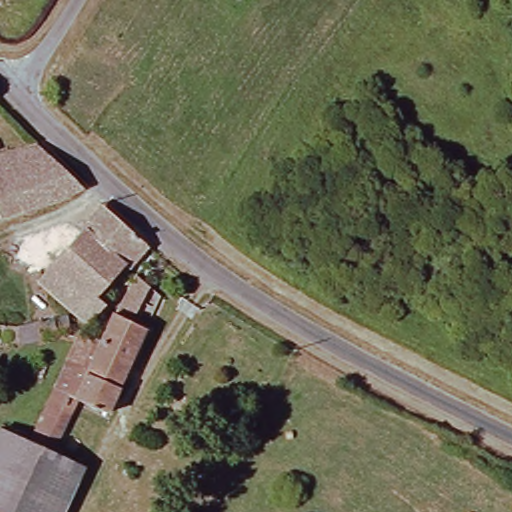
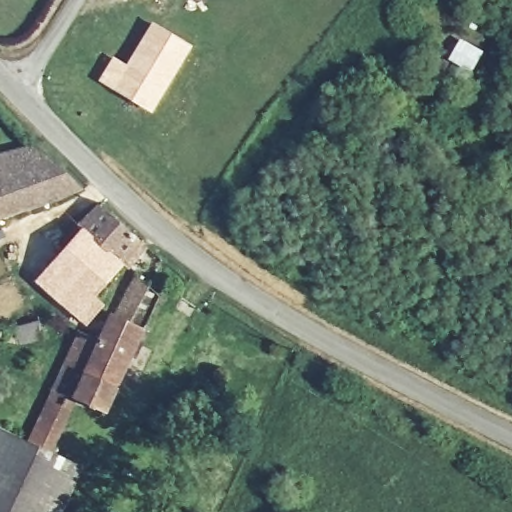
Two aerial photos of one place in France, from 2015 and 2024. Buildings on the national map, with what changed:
new [(112,56),(125,64),(152,21),(194,46),(151,113),(97,80),(112,56)]
unchanged [(0,155),(29,146),(77,189),(0,221),(0,155)]
unchanged [(101,307),(85,327),(36,282),(80,233),(75,228),(94,209),(99,206),(140,242),(92,299),(101,307)]
unchanged [(45,450),(75,463),(53,512),(0,512),(0,430),(22,441),(72,332),(87,338),(90,339),(102,313),(106,315),(127,271),(140,282),(123,320),(136,327),(99,411),(70,396),(45,450)]
unchanged [(0,325),(14,327),(37,322),(40,334),(14,341),(0,340),(0,325)]

